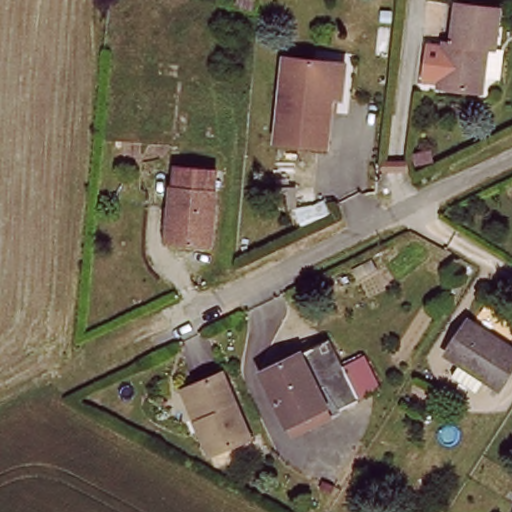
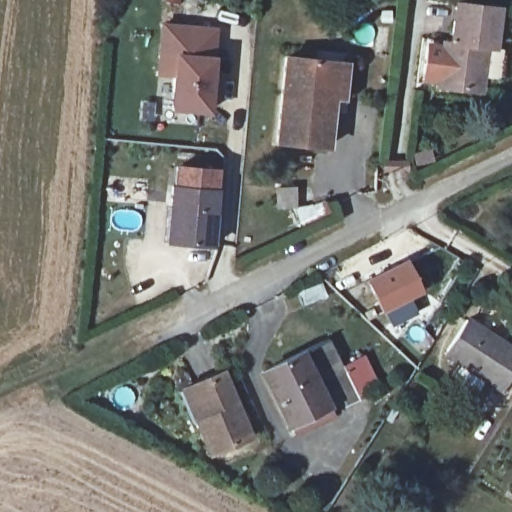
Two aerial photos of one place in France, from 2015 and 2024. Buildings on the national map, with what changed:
unchanged [(444,43),(454,43),(457,6),(490,8),(488,46),(481,46),(478,89),(441,87),(444,43)]
new [(161,21),(214,24),(209,107),(173,105),(175,71),(158,70),(161,21)]
unchanged [(341,61),(333,149),(284,145),(291,57),(341,61)]
unchanged [(177,164),(221,170),(212,246),(169,243),(177,164)]
new [(273,208),(276,189),(297,189),(300,198),(330,208),(328,216),(303,226),(295,215),(273,208)]
new [(395,333),(381,312),(365,279),(406,257),(423,292),(411,298),(419,314),(395,333)]
unchanged [(463,319),(512,348),(512,364),(497,389),(442,356),(463,319)]
unchanged [(323,337),(340,367),(350,386),(353,391),(342,396),(290,425),(260,370),(323,337)]
unchanged [(364,354),(382,390),(360,401),(353,391),(350,386),(340,367),(364,354)]
unchanged [(175,389),(223,371),(256,438),(194,452),(175,389)]

